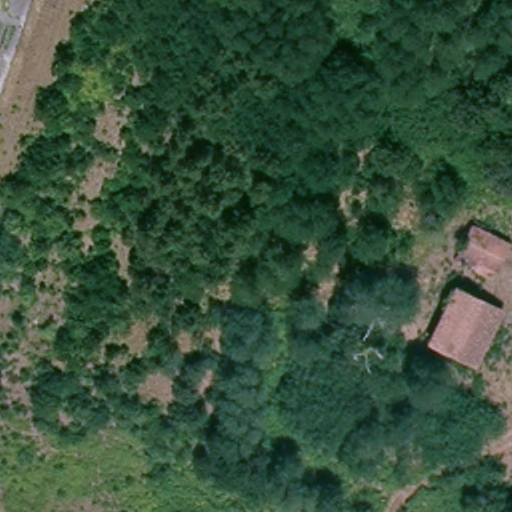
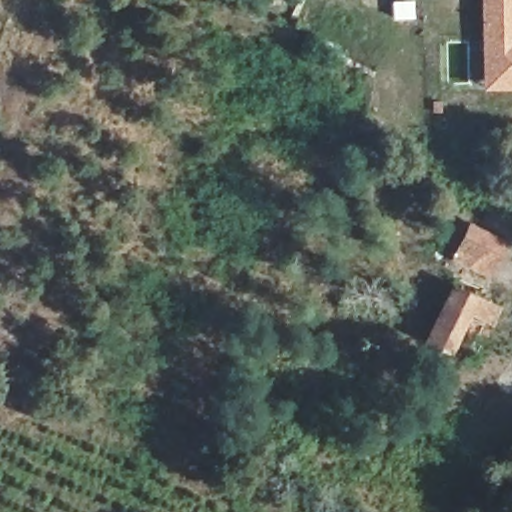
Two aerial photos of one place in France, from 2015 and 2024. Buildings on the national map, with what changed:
new [(482,0),(512,0),(512,87),(486,87),(482,0)]
unchanged [(503,245),(494,270),(453,253),(463,230),(503,245)]
unchanged [(450,354),(423,341),(450,287),(476,300),(450,354)]
unchanged [(476,300),(496,311),(470,365),(450,354),(476,300)]

